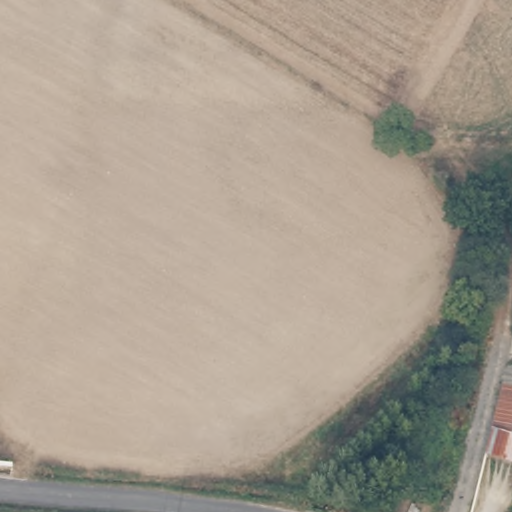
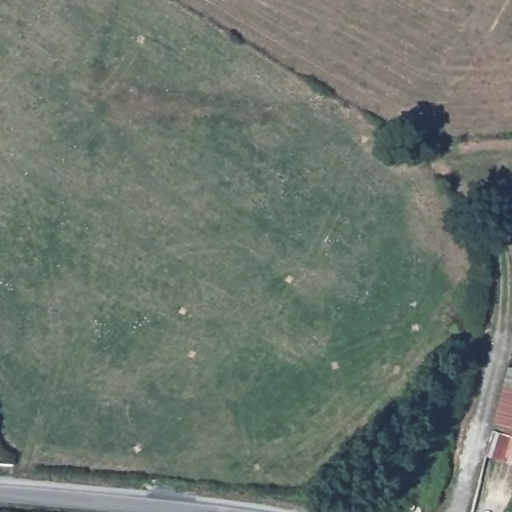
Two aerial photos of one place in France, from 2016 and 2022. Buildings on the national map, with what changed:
unchanged [(509,387),(512,376),(512,462),(491,456),(509,387)]

